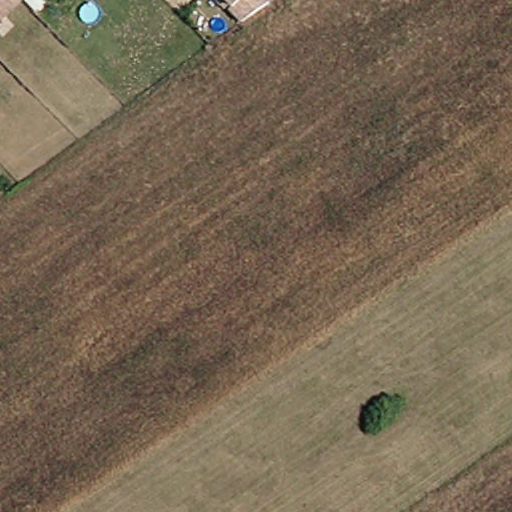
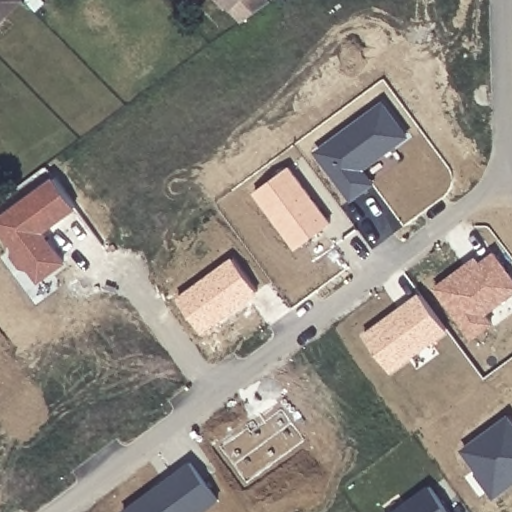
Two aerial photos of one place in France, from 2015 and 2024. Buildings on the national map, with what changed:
unchanged [(22,0),(0,22),(0,0),(22,0)]
unchanged [(226,9),(217,0),(267,0),(269,2),(255,13),(243,21),(231,9),(233,7),(231,4),(226,9)]
new [(315,151),(384,100),(412,136),(366,168),(377,184),(352,201),(315,151)]
new [(332,223),(295,249),(253,193),(290,166),(332,223)]
new [(29,270),(20,269),(11,256),(13,249),(0,230),(0,215),(54,177),(78,209),(44,233),(66,264),(39,283),(29,270)]
new [(512,295),(487,314),(495,324),(471,340),(433,287),(476,256),(481,261),(495,251),(512,274),(512,295)]
new [(177,297),(234,256),(261,292),(205,334),(177,297)]
new [(448,330),(392,374),(362,334),(420,292),(448,330)]
new [(219,449),(247,429),(250,433),(282,411),(303,442),(245,484),(219,449)]
new [(512,486),(493,499),(475,474),(477,471),(461,450),(508,414),(512,419),(512,486)]
new [(205,512),(122,512),(121,511),(191,461),(221,501),(205,512)]
new [(392,512),(430,485),(449,512),(392,512)]

